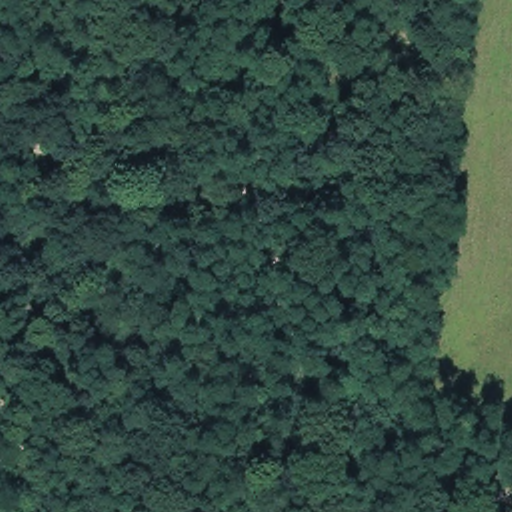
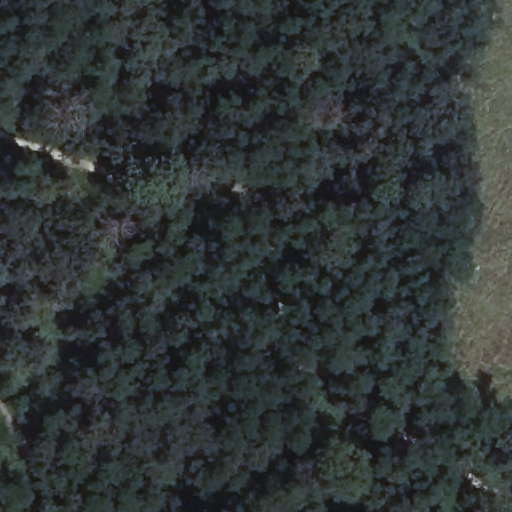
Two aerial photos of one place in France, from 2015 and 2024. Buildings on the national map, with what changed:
[]

